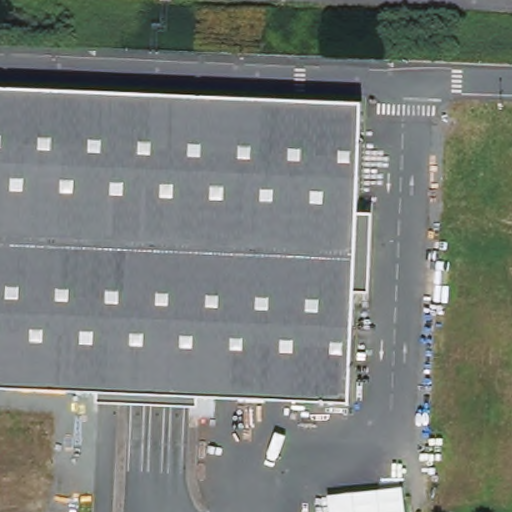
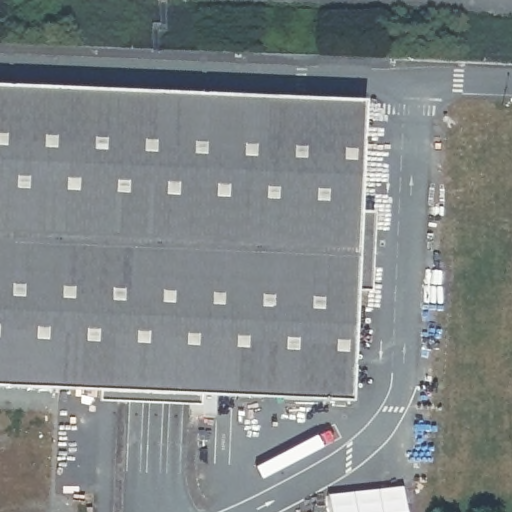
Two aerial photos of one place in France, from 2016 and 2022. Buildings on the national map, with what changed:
unchanged [(361,104),(349,405),(0,390),(0,88),(361,104)]
unchanged [(406,512),(330,512),(328,493),(403,486),(406,512)]

